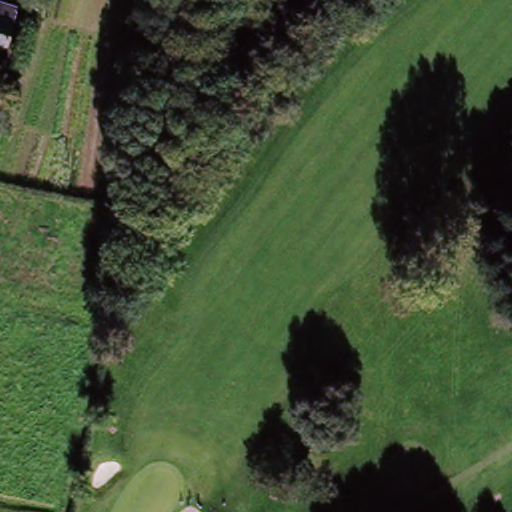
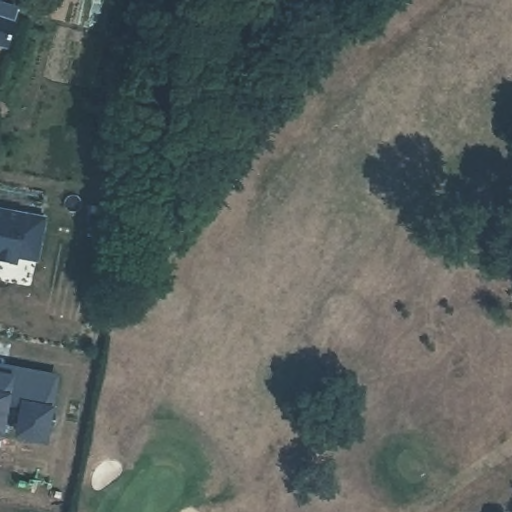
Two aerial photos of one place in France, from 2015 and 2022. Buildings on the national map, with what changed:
unchanged [(9,30),(0,56),(0,28),(9,30)]
new [(46,219),(39,260),(19,256),(18,263),(0,260),(0,210),(46,219)]
new [(8,383),(10,376),(55,384),(43,445),(21,441),(27,410),(5,405),(0,434),(0,382),(8,383)]

